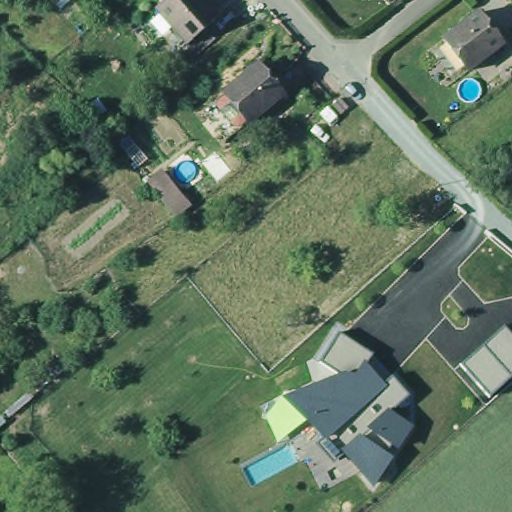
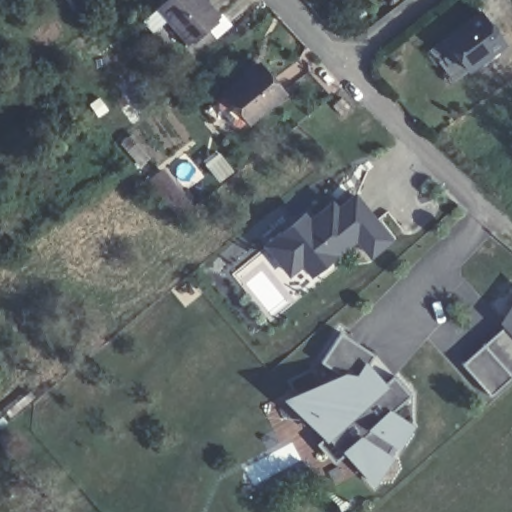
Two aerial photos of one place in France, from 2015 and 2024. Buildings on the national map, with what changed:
unchanged [(182,47),(187,44),(182,40),(157,10),(169,0),(208,0),(207,5),(217,17),(205,27),(215,39),(192,59),(182,47)]
unchanged [(482,15),(505,45),(468,72),(445,42),(482,15)]
unchanged [(263,71),(287,101),(257,127),(232,97),(263,71)]
unchanged [(337,95),(345,104),(337,112),(328,103),(337,95)]
unchanged [(257,127),(232,147),(207,117),(232,97),(257,127)]
unchanged [(174,212),(164,200),(147,177),(159,167),(176,191),(185,202),(174,212)]
new [(307,222),(321,211),(329,205),(333,210),(352,194),(387,237),(367,254),(353,237),(309,273),(299,262),(286,272),(263,244),(300,214),(307,222)]
unchanged [(462,365),(505,327),(512,335),(512,378),(492,396),(462,365)]
unchanged [(340,452),(326,438),(280,398),(340,375),(320,361),(337,332),(372,354),(364,367),(382,386),(390,378),(409,397),(393,413),(415,427),(375,487),(340,452)]

